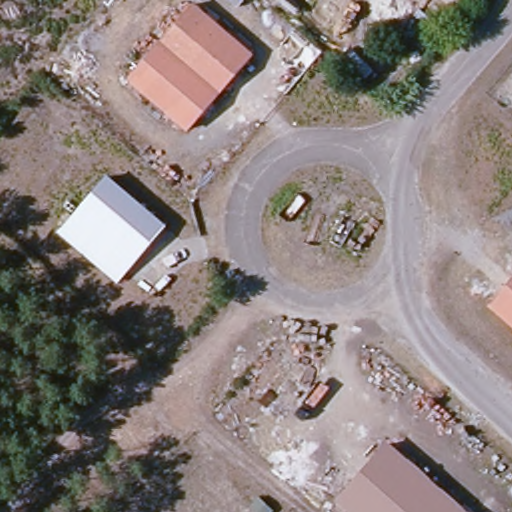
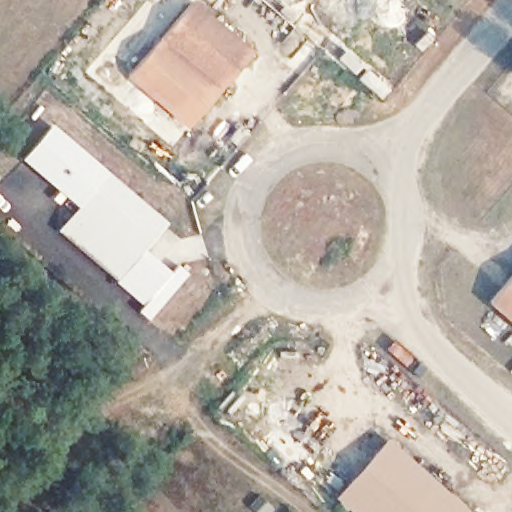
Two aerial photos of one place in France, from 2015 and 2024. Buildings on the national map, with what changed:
unchanged [(256,54),(193,126),(130,72),(194,0),(256,54)]
new [(51,125),(168,225),(165,227),(108,178),(80,210),(21,160),(51,125)]
unchanged [(57,235),(108,178),(165,227),(114,286),(57,235)]
new [(144,251),(170,273),(177,265),(187,275),(148,321),(137,313),(142,307),(116,285),(144,251)]
unchanged [(488,305),(512,278),(512,326),(488,305)]
unchanged [(467,512),(354,512),(341,500),(391,445),(467,512)]

